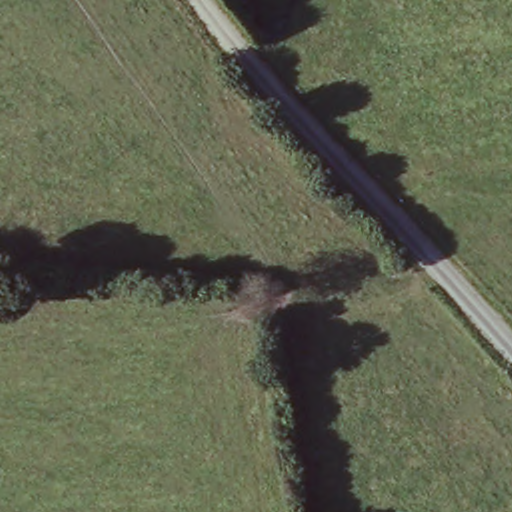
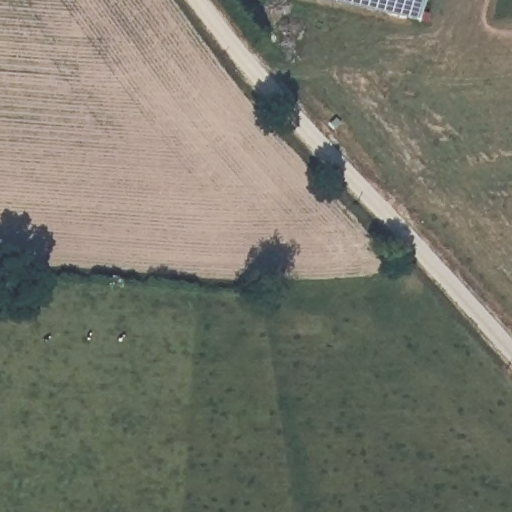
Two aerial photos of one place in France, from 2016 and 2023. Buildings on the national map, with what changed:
new [(334,0),(420,0),(416,19),(334,0)]
new [(336,118),(341,124),(334,130),(330,125),(336,118)]

